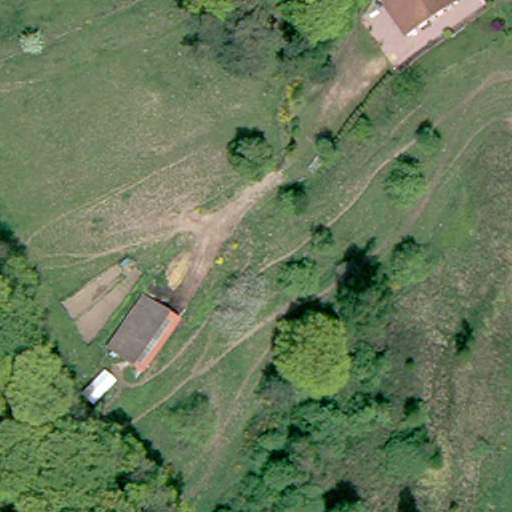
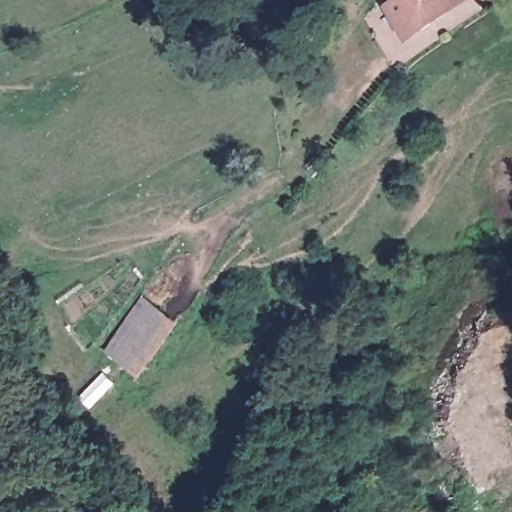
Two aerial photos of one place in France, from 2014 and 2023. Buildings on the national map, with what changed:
unchanged [(387,7),(397,0),(459,0),(410,36),(403,28),(387,7)]
unchanged [(125,356),(110,345),(145,298),(161,308),(125,356)]

